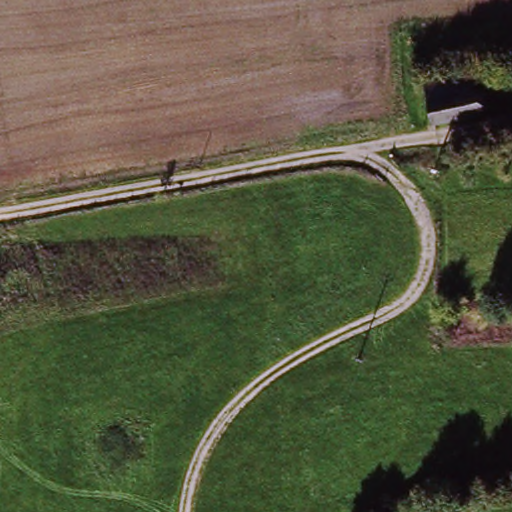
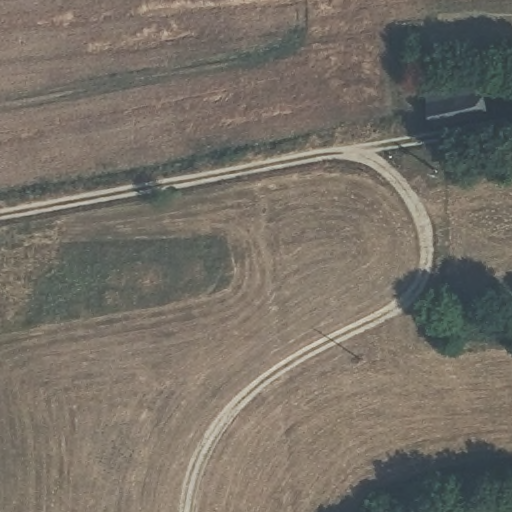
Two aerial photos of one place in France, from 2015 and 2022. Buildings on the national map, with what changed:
unchanged [(480,86),(484,110),(434,116),(432,93),(480,86)]

